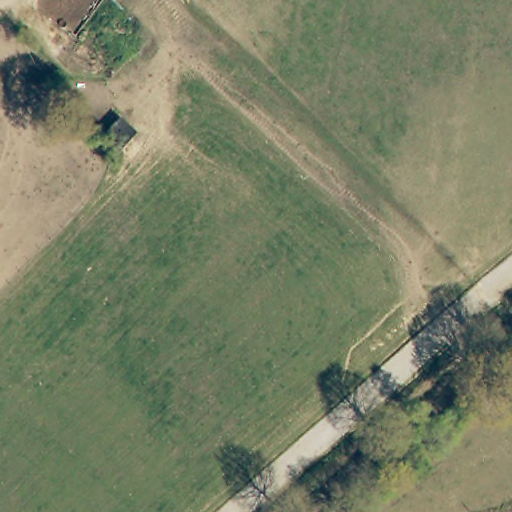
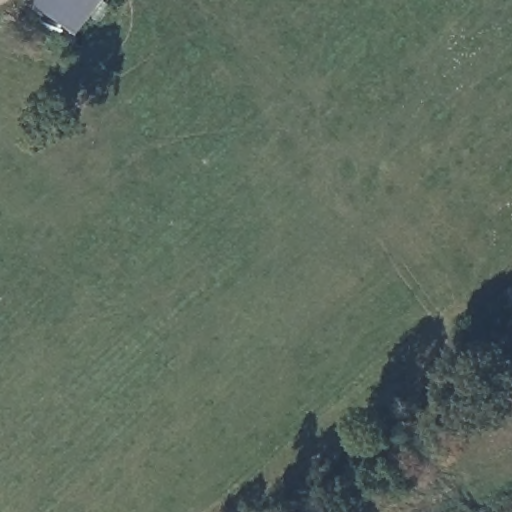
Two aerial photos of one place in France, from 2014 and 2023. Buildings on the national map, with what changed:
new [(77,41),(26,0),(107,0),(77,41)]

